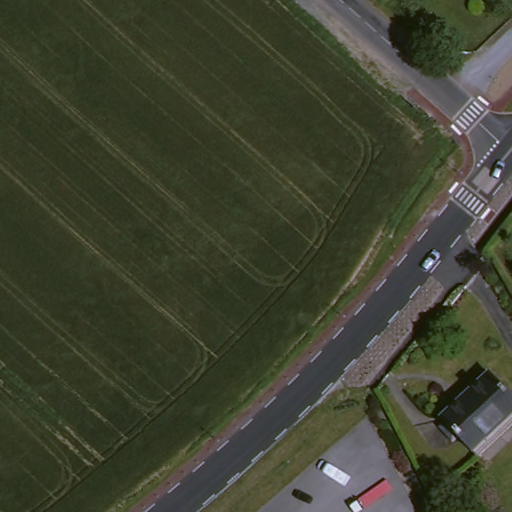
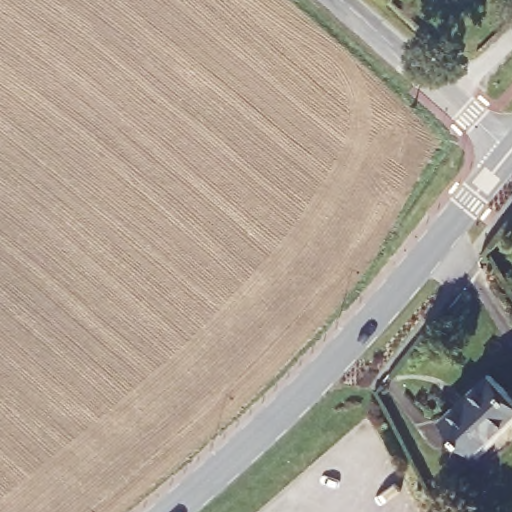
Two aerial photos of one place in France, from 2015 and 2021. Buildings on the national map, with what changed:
unchanged [(512,397),(512,418),(476,452),(441,412),(487,370),(512,397)]

